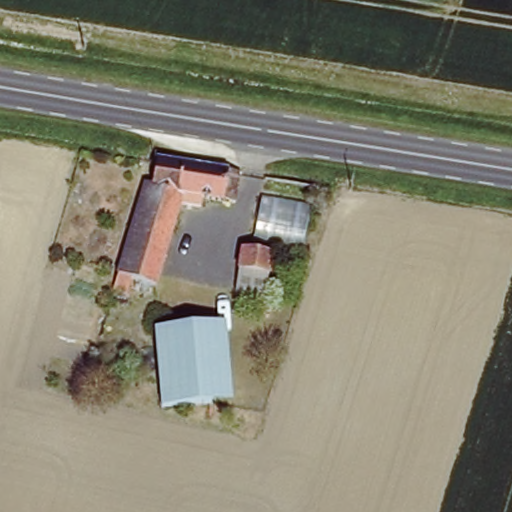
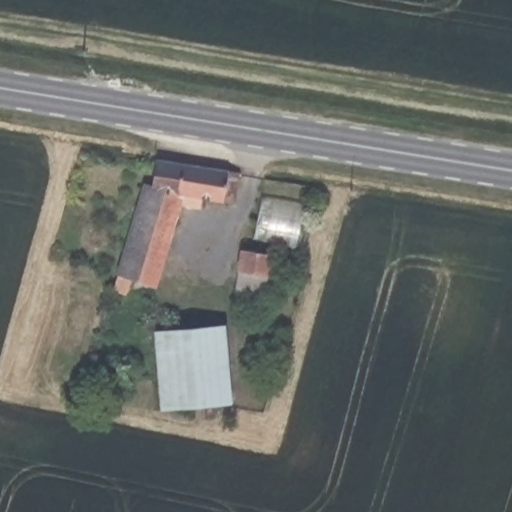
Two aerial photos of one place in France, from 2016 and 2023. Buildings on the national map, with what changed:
unchanged [(150,179),(154,180),(161,158),(246,173),(238,202),(188,191),(183,207),(191,210),(186,225),(178,223),(154,296),(118,284),(150,179)]
unchanged [(238,255),(269,257),(264,300),(234,297),(238,255)]
unchanged [(225,325),(233,408),(163,413),(156,331),(225,325)]

